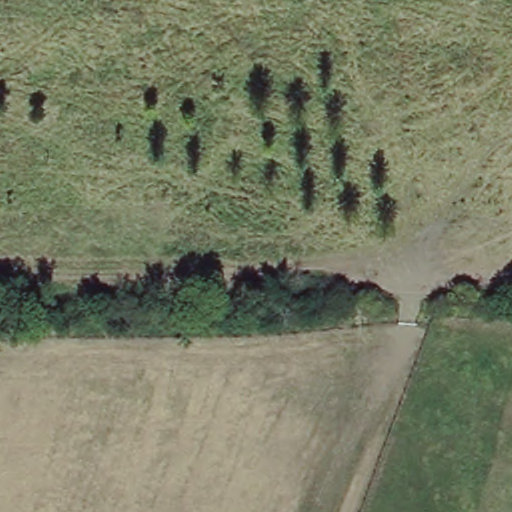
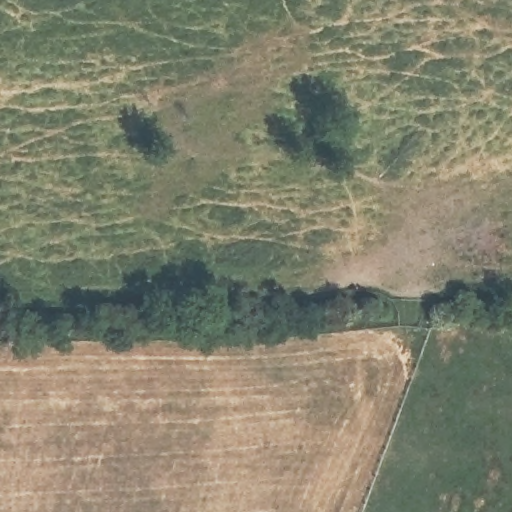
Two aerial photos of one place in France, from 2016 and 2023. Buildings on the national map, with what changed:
[]

